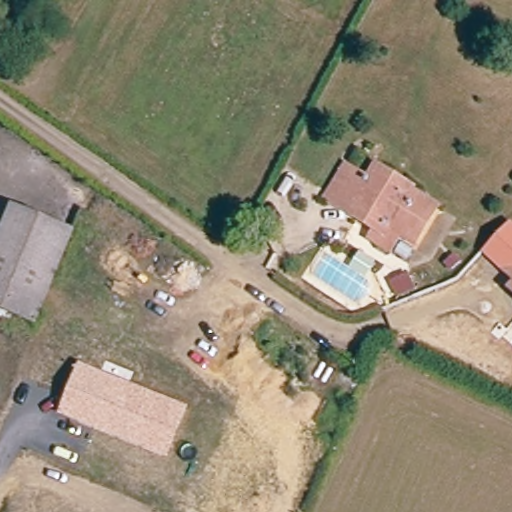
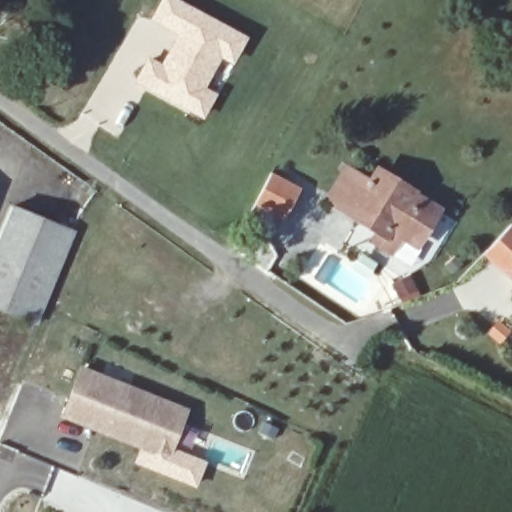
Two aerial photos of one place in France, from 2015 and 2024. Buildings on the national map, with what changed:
new [(159,62),(175,34),(149,19),(160,0),(182,0),(247,35),(232,64),(221,58),(205,86),(217,93),(203,119),(134,82),(148,56),(159,62)]
unchanged [(400,240),(386,255),(363,240),(367,230),(321,201),(342,161),(364,177),(374,163),(440,205),(417,250),(400,240)]
new [(301,186),(284,220),(252,204),(270,170),(301,186)]
unchanged [(69,229),(33,321),(0,308),(0,229),(10,203),(69,229)]
new [(512,268),(506,275),(484,255),(511,225),(512,225),(512,268)]
unchanged [(413,295),(395,295),(394,280),(412,279),(413,295)]
unchanged [(79,365),(187,408),(167,460),(58,417),(79,365)]

